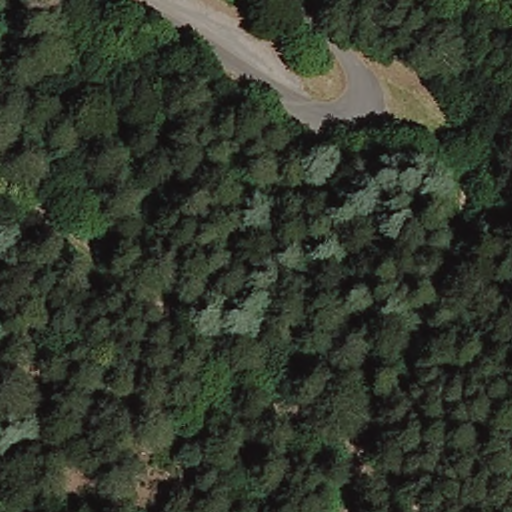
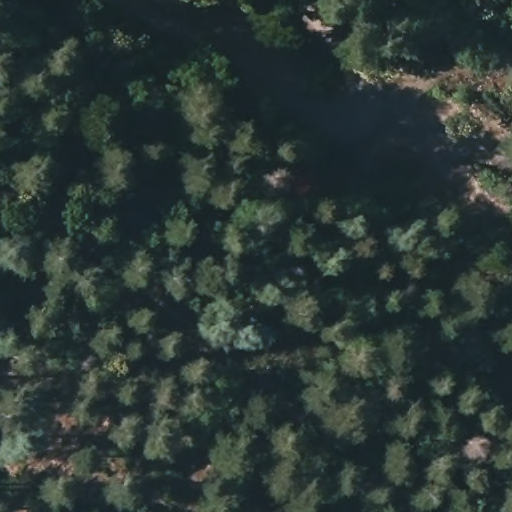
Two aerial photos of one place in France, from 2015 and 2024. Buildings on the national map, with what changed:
unchanged [(339,29),(355,7),(387,34),(369,53),(339,29)]

